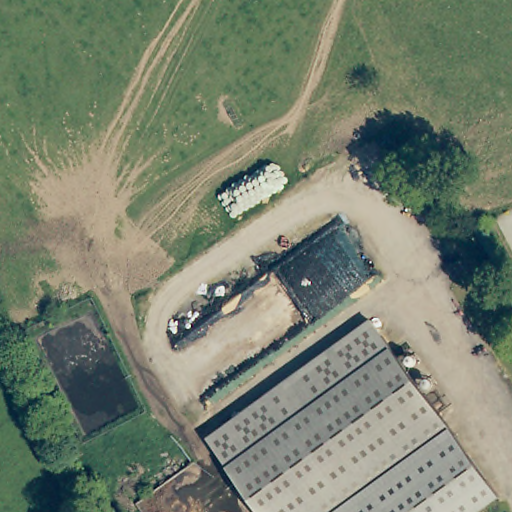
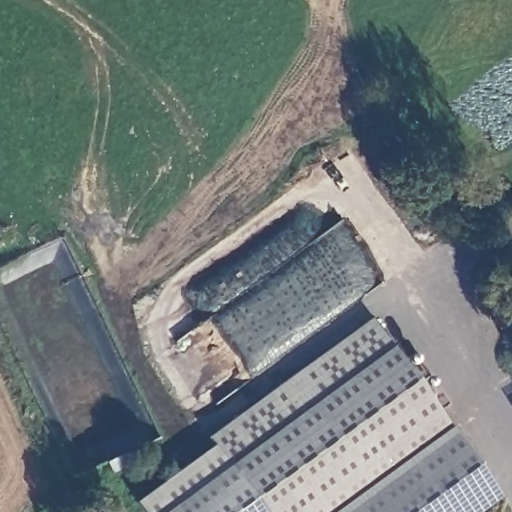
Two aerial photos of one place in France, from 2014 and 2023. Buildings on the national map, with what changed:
unchanged [(207,441),(370,320),(455,435),(351,512),(259,512),(207,441)]
unchanged [(455,435),(500,496),(479,512),(351,512),(455,435)]
new [(134,504),(212,447),(260,512),(140,512),(134,504)]

